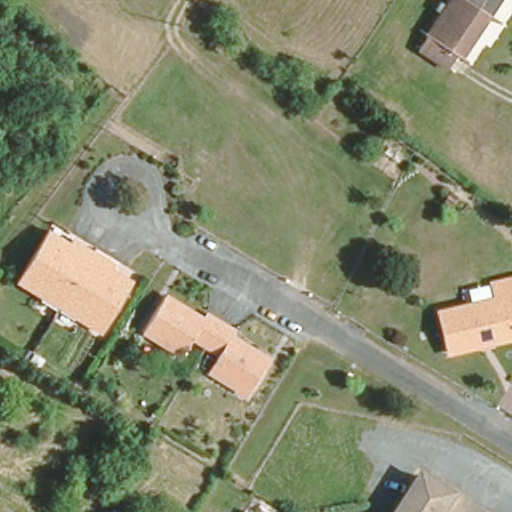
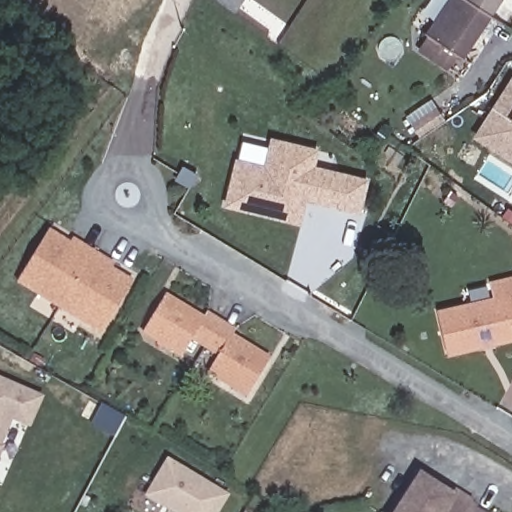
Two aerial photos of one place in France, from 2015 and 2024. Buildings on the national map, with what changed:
unchanged [(457,50),(449,61),(420,43),(449,0),(500,0),(463,53),(457,50)]
new [(511,76),(512,77),(512,164),(471,138),(511,76)]
new [(420,135),(414,126),(439,110),(445,118),(420,135)]
new [(315,165),(368,178),(360,215),(307,202),(301,226),(223,207),(237,158),(263,164),(270,136),(318,148),(315,165)]
unchanged [(96,328),(15,275),(47,227),(74,244),(77,238),(104,255),(100,262),(128,279),(96,328)]
unchanged [(469,300),(495,293),(497,292),(495,280),(512,275),(512,334),(453,350),(442,308),(469,300)]
unchanged [(234,384),(209,369),(221,348),(193,330),(180,351),(159,338),(145,329),(149,323),(167,293),(202,314),(206,309),(235,327),(233,331),(270,354),(251,385),(246,392),(234,384)]
new [(40,399),(30,425),(11,418),(0,444),(0,383),(40,399)]
new [(2,448),(0,453),(0,447),(2,448)]
new [(167,460),(229,494),(219,512),(175,512),(147,497),(167,460)]
unchanged [(484,512),(394,512),(419,471),(458,495),(484,512)]

